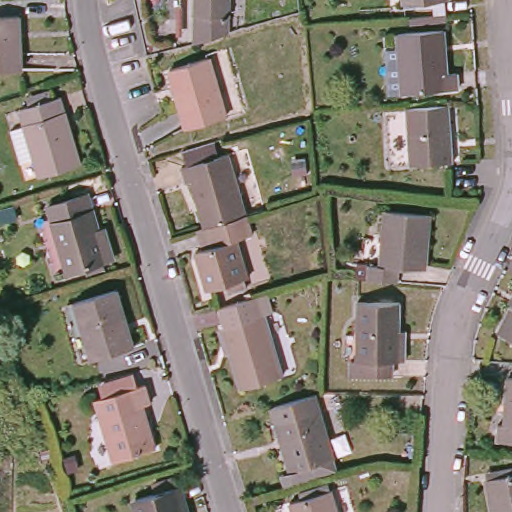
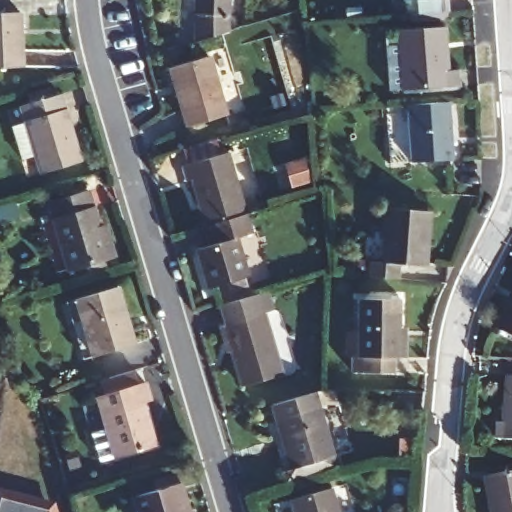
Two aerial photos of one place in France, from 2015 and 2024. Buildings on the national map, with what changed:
unchanged [(225,24),(191,34),(193,0),(226,0),(225,24)]
unchanged [(0,61),(0,6),(22,6),(23,60),(0,61)]
unchanged [(448,23),(450,38),(444,38),(447,64),(461,63),(463,81),(410,86),(395,87),(392,42),(390,28),(405,27),(405,26),(448,23)]
unchanged [(227,112),(188,124),(170,63),(208,52),(227,112)]
unchanged [(77,161),(37,172),(33,153),(17,157),(9,123),(24,119),(20,105),(28,103),(25,93),(50,86),(52,96),(60,94),(77,161)]
unchanged [(453,153),(410,157),(407,102),(449,98),(453,153)]
unchanged [(189,175),(182,177),(178,164),(177,161),(183,159),(180,145),(179,145),(211,135),(211,136),(215,150),(225,147),(243,210),(202,222),(189,175)]
unchanged [(110,249),(57,264),(42,209),(55,205),(52,194),(91,183),(110,249)]
unchanged [(368,274),(355,273),(355,259),(381,257),(382,207),(422,205),(421,261),(398,261),(397,275),(368,274)]
unchanged [(248,227),(234,232),(245,271),(200,286),(187,246),(202,242),(197,224),(202,222),(243,210),(248,227)]
unchanged [(67,295),(76,292),(117,279),(134,339),(94,353),(85,356),(67,295)]
unchanged [(272,309),(265,311),(282,372),(242,384),(223,324),(226,324),(220,301),(266,287),(272,309)]
unchanged [(399,323),(410,323),(410,349),(392,350),(391,368),(346,368),(347,353),(334,352),(336,321),(356,322),(357,292),(399,292),(399,323)]
unchanged [(505,329),(512,314),(512,332),(505,329)]
unchanged [(494,432),(495,413),(503,414),(505,370),(512,370),(512,433),(494,432)]
unchanged [(150,394),(142,397),(154,438),(113,452),(95,394),(145,377),(150,394)]
unchanged [(280,470),(290,467),(283,447),(274,415),(270,400),(313,388),(317,403),(332,453),(336,466),(292,478),(283,481),(280,470)]
unchanged [(512,466),(512,512),(493,512),(486,469),(512,466)]
unchanged [(181,502),(184,512),(140,512),(133,491),(179,478),(186,500),(181,502)]
unchanged [(285,494),(327,482),(335,512),(287,512),(282,495),(285,494)]
new [(0,512),(0,488),(55,502),(58,512),(0,512)]

